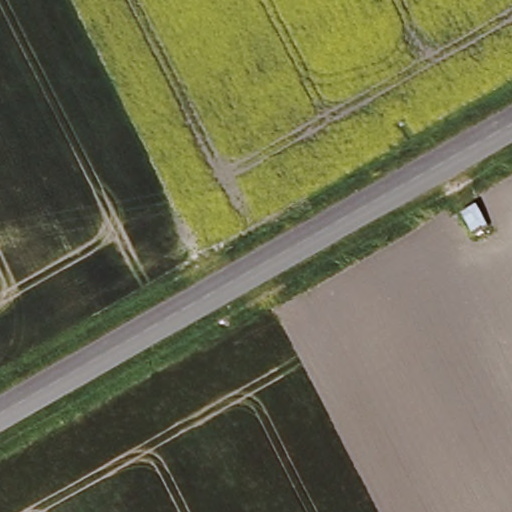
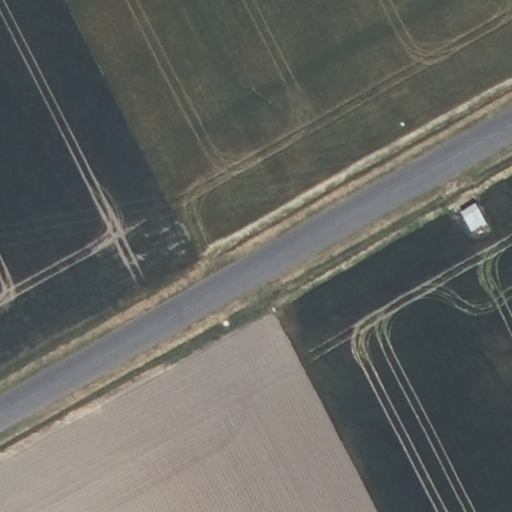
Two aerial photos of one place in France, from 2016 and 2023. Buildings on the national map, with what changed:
unchanged [(476,214),(484,232),(468,240),(459,221),(476,214)]

